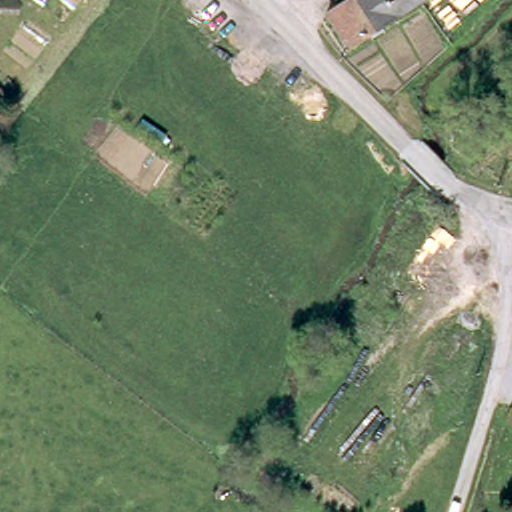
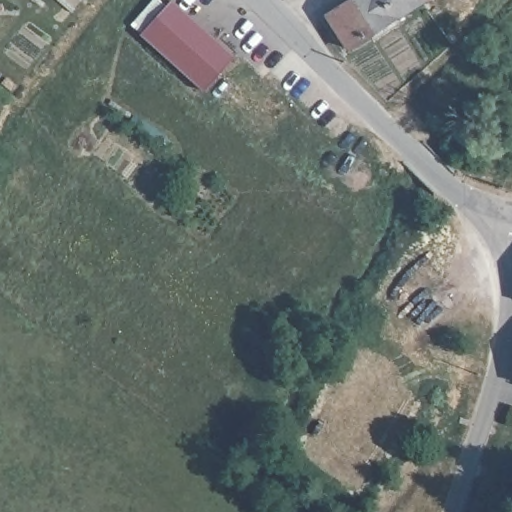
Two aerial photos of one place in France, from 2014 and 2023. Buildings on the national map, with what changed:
new [(235,57),(203,92),(139,35),(172,0),(235,57)]
unchanged [(422,0),(422,1),(349,46),(326,14),(348,0),(422,0)]

